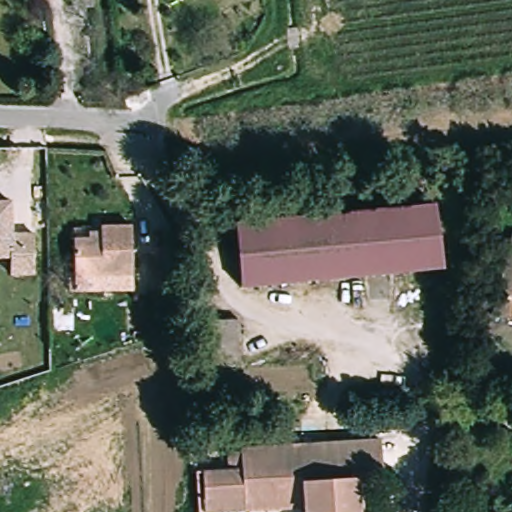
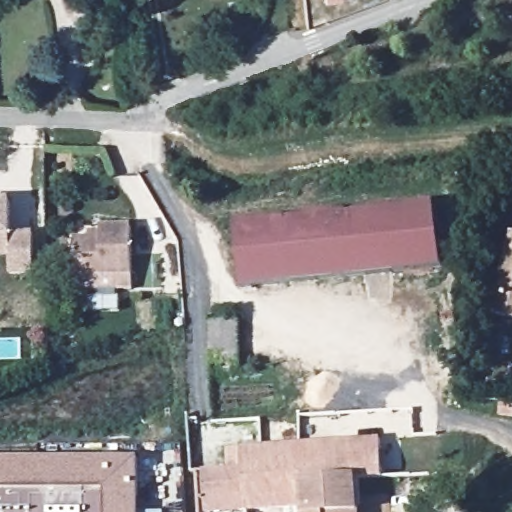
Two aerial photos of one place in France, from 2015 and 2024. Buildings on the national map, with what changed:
unchanged [(13,234),(35,232),(38,272),(15,274),(13,256),(0,257),(0,202),(10,201),(13,234)]
unchanged [(282,219),(437,206),(442,269),(287,282),(241,286),(237,222),(282,219)]
unchanged [(128,224),(130,251),(132,272),(73,277),(71,240),(98,239),(97,226),(128,224)]
unchanged [(490,313),(512,234),(512,318),(490,313)]
unchanged [(247,363),(215,366),(215,365),(212,322),(243,319),(247,363)]
unchanged [(387,439),(388,477),(362,478),(362,512),(309,512),(309,507),(205,511),(205,492),(203,470),(234,468),(234,464),(234,445),(292,442),(387,439)]
new [(137,512),(0,512),(0,460),(137,458),(137,512)]

